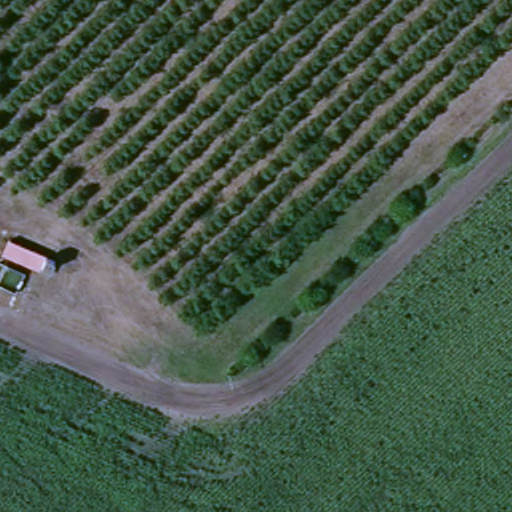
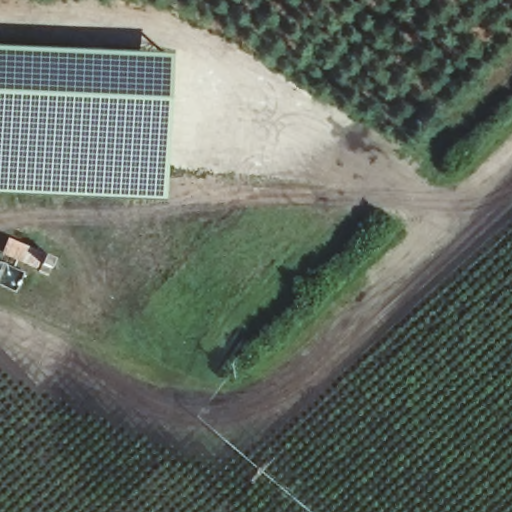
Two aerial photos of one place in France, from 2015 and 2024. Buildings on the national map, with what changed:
new [(166,202),(0,193),(0,48),(172,56),(166,202)]
unchanged [(58,259),(50,281),(40,276),(3,256),(10,239),(46,255),(58,259)]

